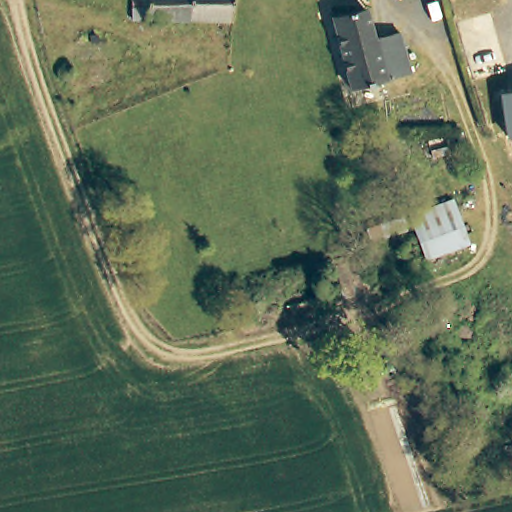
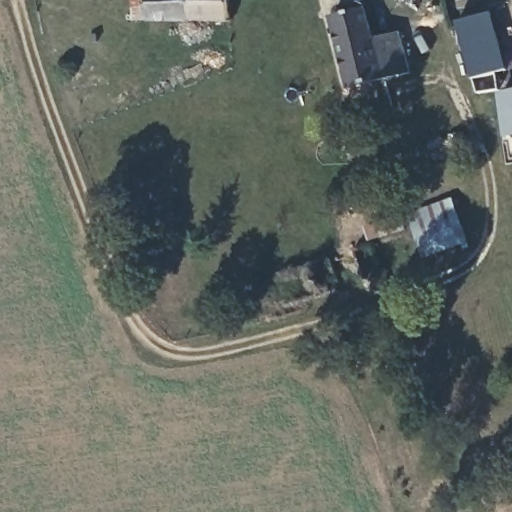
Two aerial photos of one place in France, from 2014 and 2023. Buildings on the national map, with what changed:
unchanged [(138,0),(235,0),(235,22),(137,18),(138,0)]
unchanged [(332,18),(365,8),(374,40),(399,32),(410,71),(350,90),(332,18)]
new [(473,79),(456,22),(492,11),(509,69),(473,79)]
unchanged [(499,92),(512,90),(512,135),(504,136),(499,92)]
unchanged [(468,243),(423,259),(408,213),(453,199),(468,243)]
unchanged [(402,216),(406,230),(368,242),(363,227),(402,216)]

